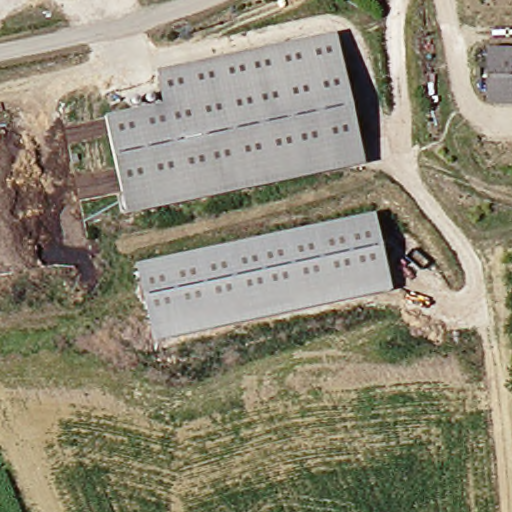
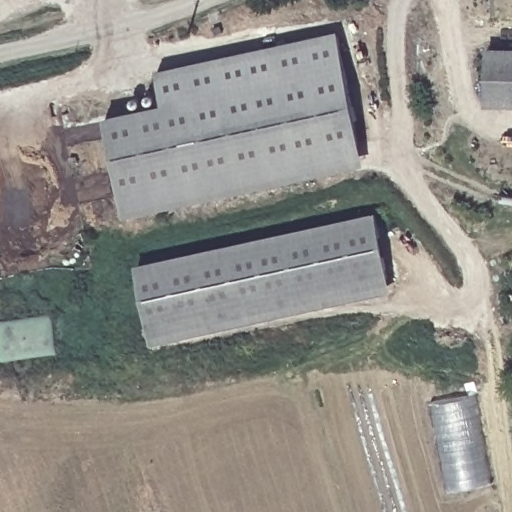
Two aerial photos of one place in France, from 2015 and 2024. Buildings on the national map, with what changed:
unchanged [(125,216),(107,119),(166,109),(159,74),(339,39),(359,142),(366,171),(184,205),(125,216)]
unchanged [(482,49),(512,51),(512,109),(482,107),(482,49)]
unchanged [(139,266),(377,213),(393,290),(154,346),(139,266)]
new [(477,396),(493,486),(448,494),(432,404),(477,396)]

